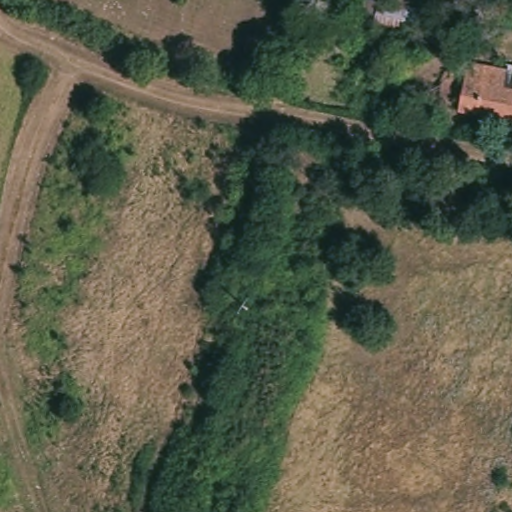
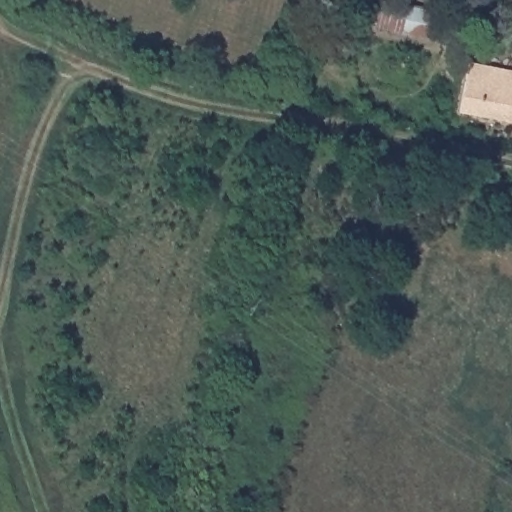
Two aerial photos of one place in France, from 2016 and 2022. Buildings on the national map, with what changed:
unchanged [(428,37),(360,25),(365,0),(373,0),(432,11),(428,37)]
unchanged [(504,94),(512,95),(512,127),(459,116),(468,67),(507,75),(504,94)]

